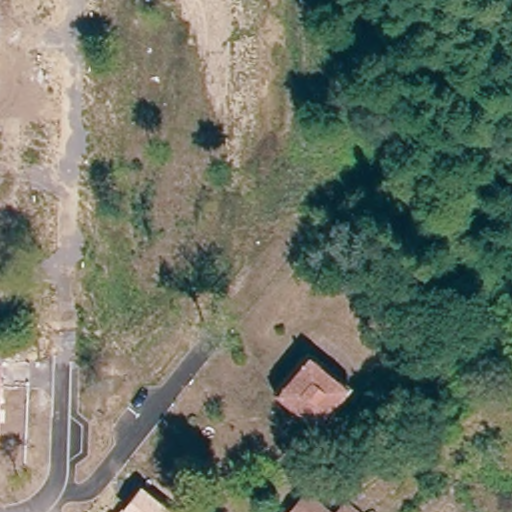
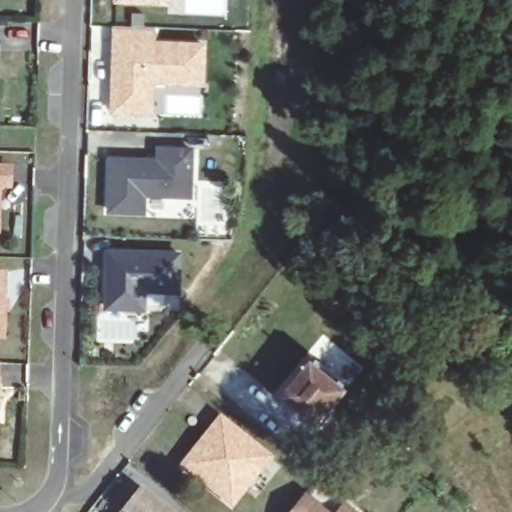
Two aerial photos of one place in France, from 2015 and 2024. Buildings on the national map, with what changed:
new [(135,0),(169,0),(169,1),(135,0)]
new [(116,31),(155,32),(155,47),(205,49),(203,87),(153,85),(152,117),(114,116),(116,31)]
new [(181,200),(146,199),(145,217),(111,216),(112,164),(147,165),(159,165),(160,153),(193,154),(192,190),(191,201),(181,200)]
unchanged [(12,173),(12,192),(1,191),(0,214),(0,173),(12,173)]
new [(146,287),(146,307),(104,306),(106,246),(180,247),(179,289),(146,287)]
unchanged [(7,278),(6,342),(0,342),(0,278),(7,278)]
unchanged [(301,342),(344,372),(312,414),(271,386),(301,342)]
new [(272,455),(230,506),(176,466),(218,414),(272,455)]
unchanged [(374,446),(387,467),(351,488),(339,469),(374,446)]
unchanged [(123,508),(141,485),(173,512),(118,512),(121,508),(123,508)]
unchanged [(333,511),(341,498),(359,512),(287,512),(303,491),(333,511)]

